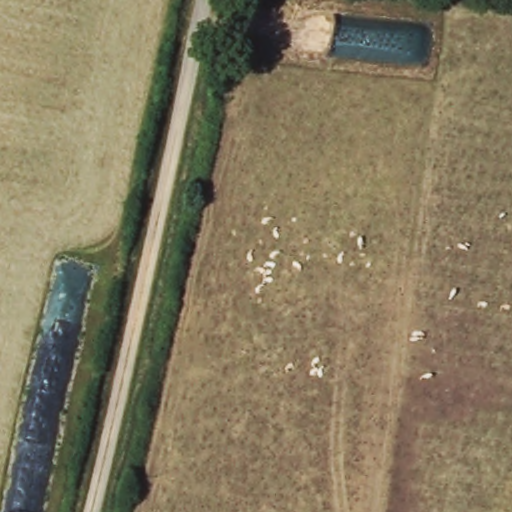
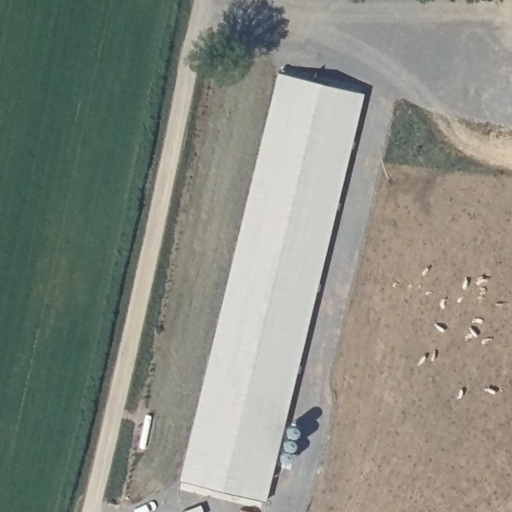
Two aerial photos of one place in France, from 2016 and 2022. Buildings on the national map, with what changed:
new [(277,73),(363,94),(285,422),(298,425),(290,464),(276,461),(266,500),(180,479),(277,73)]

